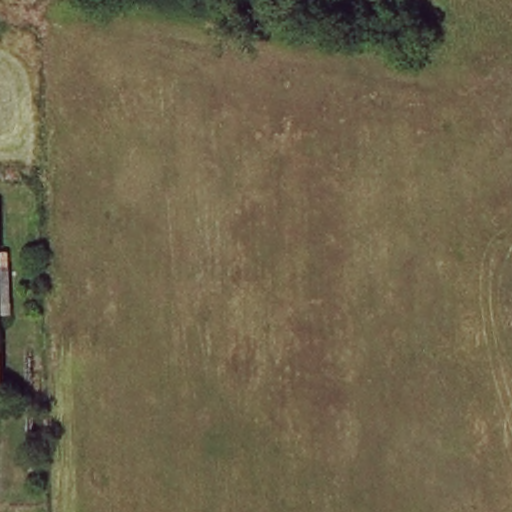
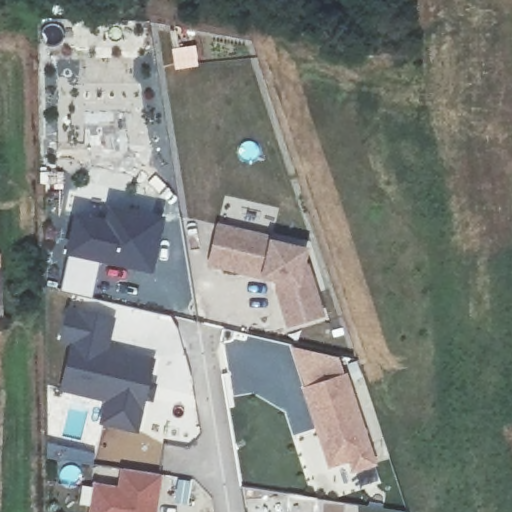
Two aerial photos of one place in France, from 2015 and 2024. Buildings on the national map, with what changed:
new [(60,293),(71,255),(66,254),(74,214),(108,219),(111,204),(166,217),(154,274),(101,264),(93,300),(60,293)]
new [(288,329),(275,283),(208,267),(218,224),(272,236),(310,248),(306,263),(326,316),(288,329)]
new [(100,425),(106,403),(60,392),(70,347),(60,345),(68,307),(115,318),(109,349),(156,359),(151,382),(158,384),(153,404),(145,403),(139,434),(100,425)]
new [(354,475),(351,464),(330,470),(304,388),(346,374),(378,467),(354,475)]
new [(95,484),(118,487),(121,469),(162,475),(157,512),(91,512),(95,484)]

